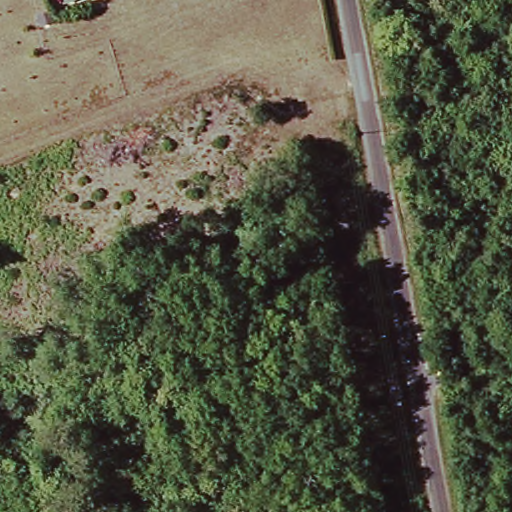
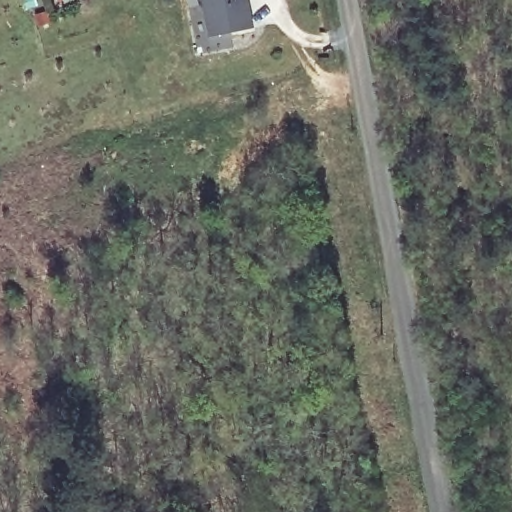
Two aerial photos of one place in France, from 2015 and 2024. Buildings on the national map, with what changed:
new [(255,27),(209,36),(203,0),(250,0),(255,27)]

